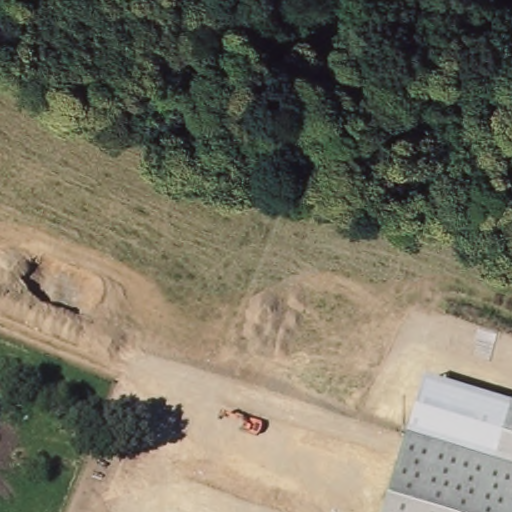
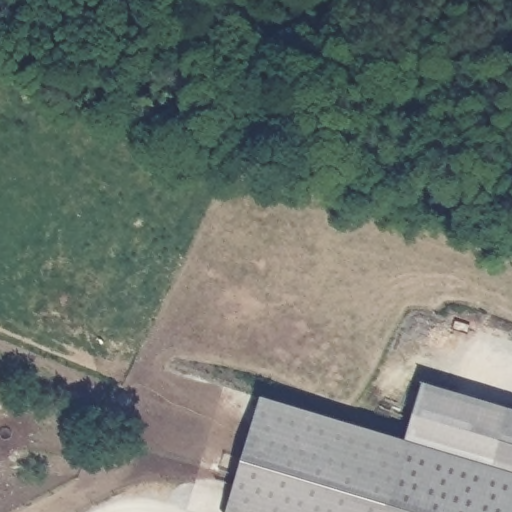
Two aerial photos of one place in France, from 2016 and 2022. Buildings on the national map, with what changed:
unchanged [(492,465),(405,440),(423,383),(509,408),(492,465)]
new [(228,512),(261,397),(405,440),(383,512),(228,512)]
unchanged [(512,409),(512,512),(383,512),(405,440),(492,465),(509,408),(512,409)]

